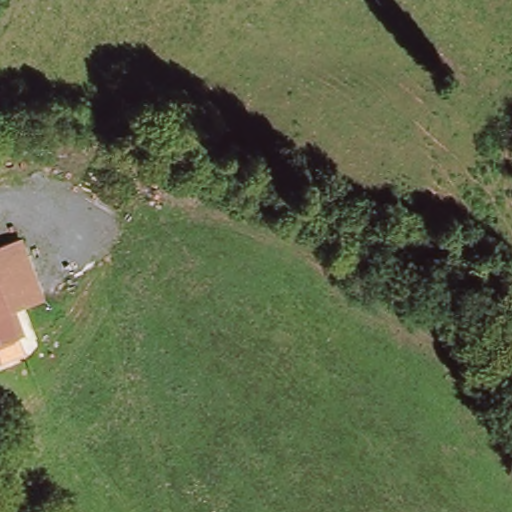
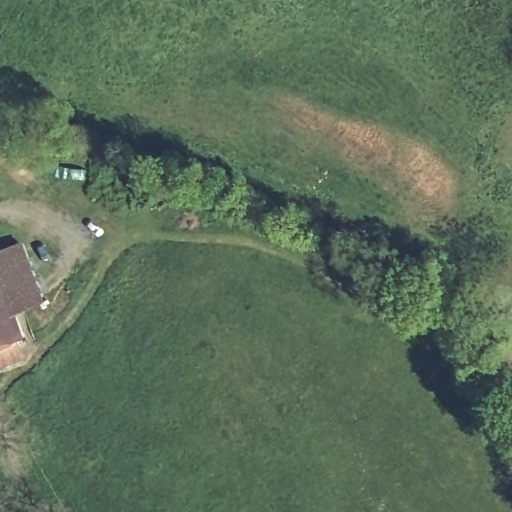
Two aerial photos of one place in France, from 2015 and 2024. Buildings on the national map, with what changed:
unchanged [(24,240),(47,300),(14,313),(0,279),(0,249),(24,240)]
unchanged [(0,346),(0,279),(14,313),(24,336),(0,346)]

